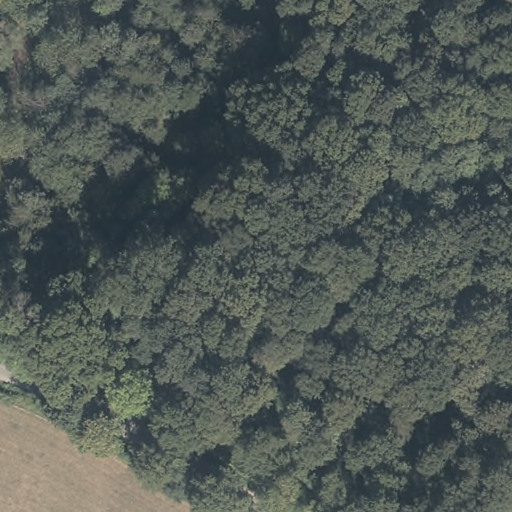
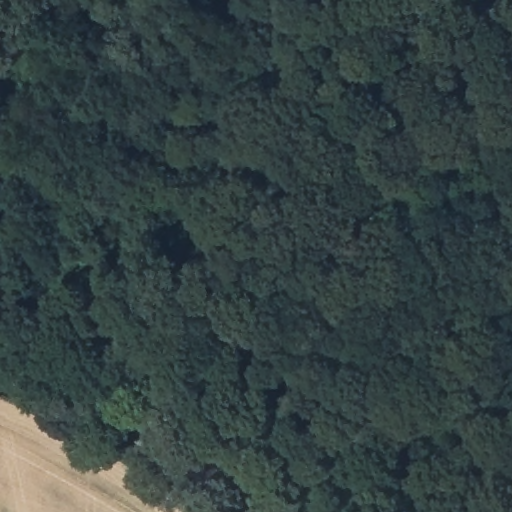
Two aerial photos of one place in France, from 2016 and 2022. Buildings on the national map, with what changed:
[]

